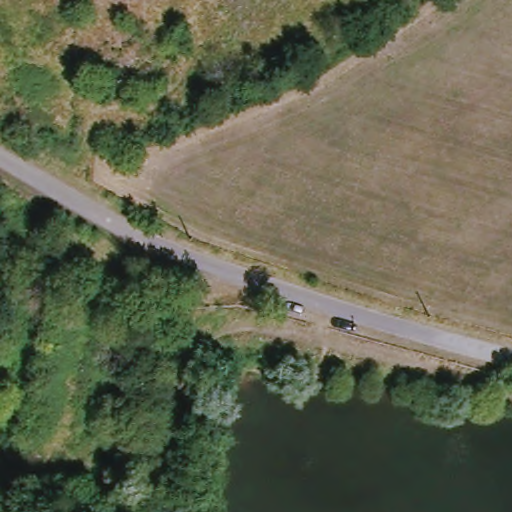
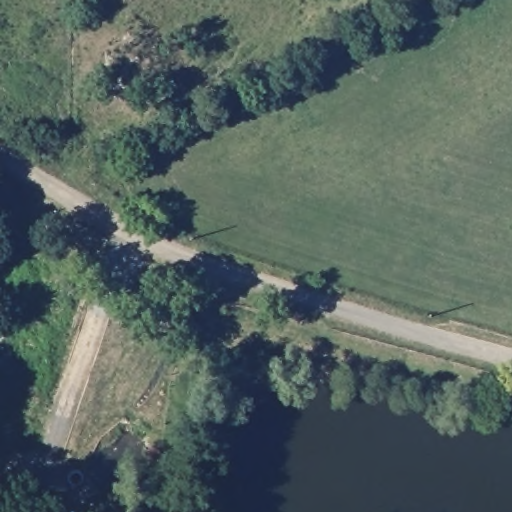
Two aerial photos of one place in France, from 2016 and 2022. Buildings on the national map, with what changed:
unchanged [(157,101),(142,106),(137,84),(152,80),(157,101)]

